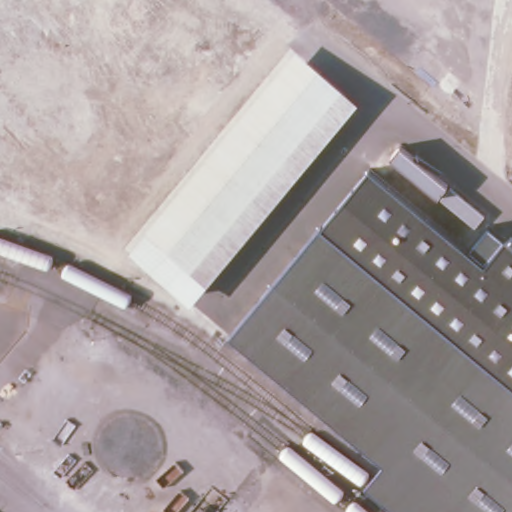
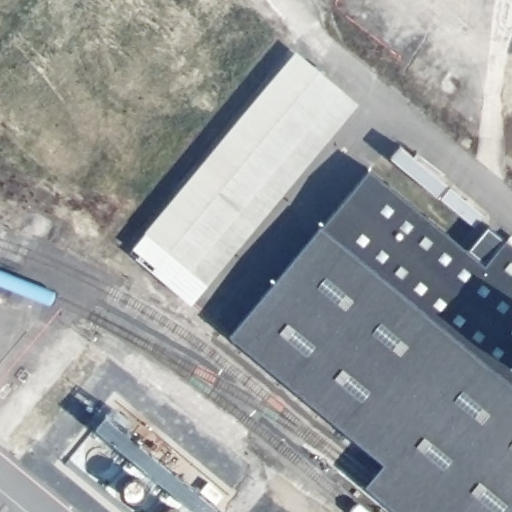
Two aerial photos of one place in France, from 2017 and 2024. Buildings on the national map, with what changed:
unchanged [(140,239),(296,51),(358,104),(201,292),(140,239)]
unchanged [(359,489),(385,460),(229,329),(372,160),(465,239),(480,219),(512,246),(512,512),(386,512),(359,489)]

